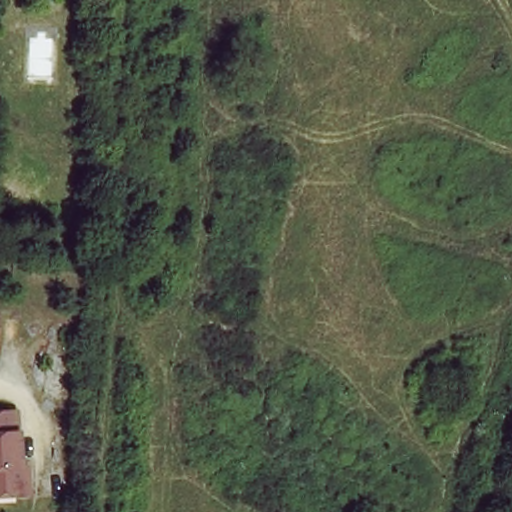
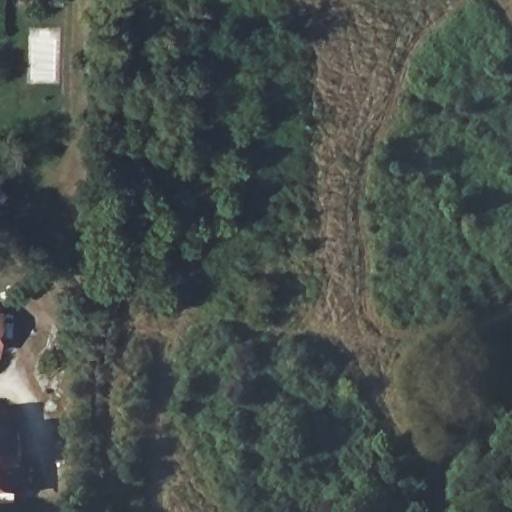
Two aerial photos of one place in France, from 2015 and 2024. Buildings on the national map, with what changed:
unchanged [(17,413),(22,468),(30,467),(32,494),(18,494),(20,501),(0,502),(0,414),(17,413)]

